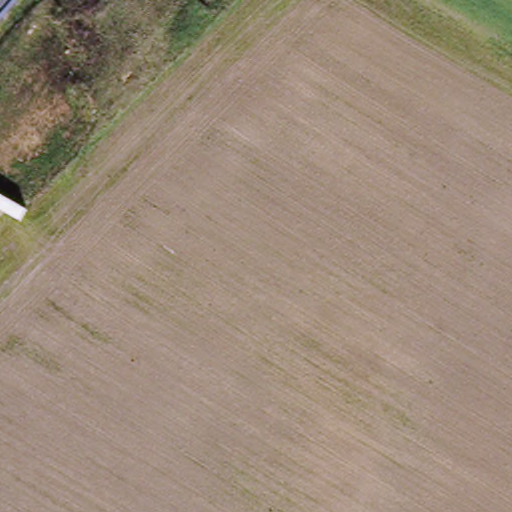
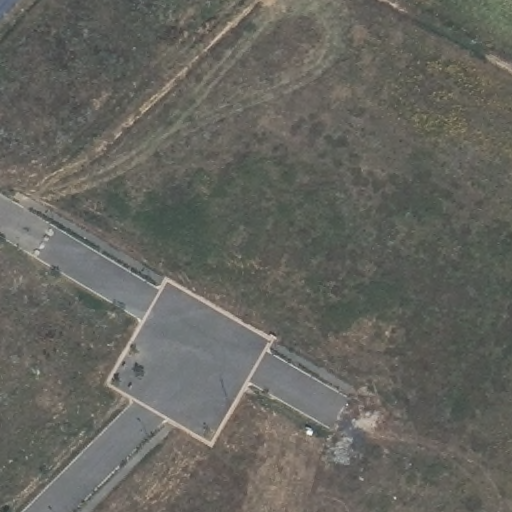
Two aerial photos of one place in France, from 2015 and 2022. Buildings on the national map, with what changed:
unchanged [(0,0),(18,0),(0,20),(0,0)]

